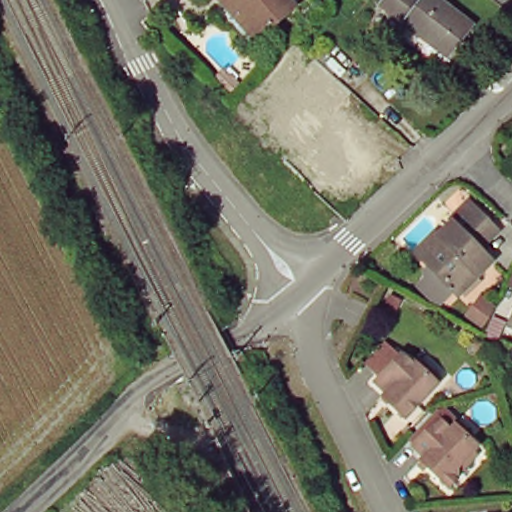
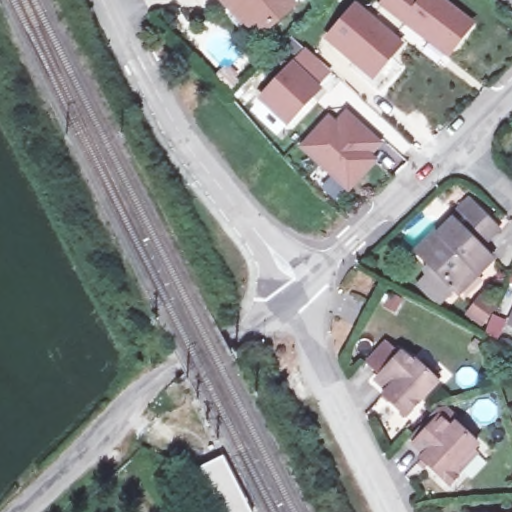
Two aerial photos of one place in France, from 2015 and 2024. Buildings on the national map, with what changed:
unchanged [(225,0),(296,0),(299,3),(266,31),(255,40),(233,15),(236,12),(225,0)]
unchanged [(479,22),(451,58),(387,8),(394,0),(451,0),(479,22)]
new [(372,82),(323,40),(355,3),(405,45),(372,82)]
new [(285,126),(256,100),(292,61),(321,90),(285,126)]
unchanged [(227,63),(240,78),(232,85),(219,70),(227,63)]
new [(371,157),(377,162),(346,194),(298,147),(328,115),(335,121),(346,110),(381,145),(371,157)]
demolished [(309,140),(333,172),(313,190),(286,159),(300,148),(309,140)]
unchanged [(480,272),(475,267),(457,286),(419,250),(440,229),(442,233),(456,221),(452,216),(472,196),(495,218),(505,230),(486,250),(494,259),(480,272)]
unchanged [(507,343),(495,336),(504,318),(512,321),(512,334),(507,343)]
unchanged [(403,419),(380,398),(385,394),(373,383),(397,356),(403,360),(410,366),(412,364),(415,366),(419,362),(438,380),(435,384),(435,385),(403,419)]
unchanged [(416,461),(420,457),(419,457),(423,453),(411,442),(436,415),(448,426),(453,421),(475,442),(471,447),(475,451),(455,472),(455,475),(447,483),(426,463),(423,467),(416,461)]
unchanged [(227,460),(255,512),(228,512),(206,470),(227,460)]

